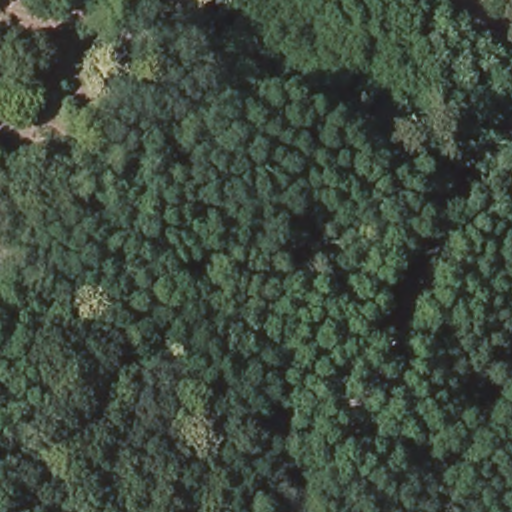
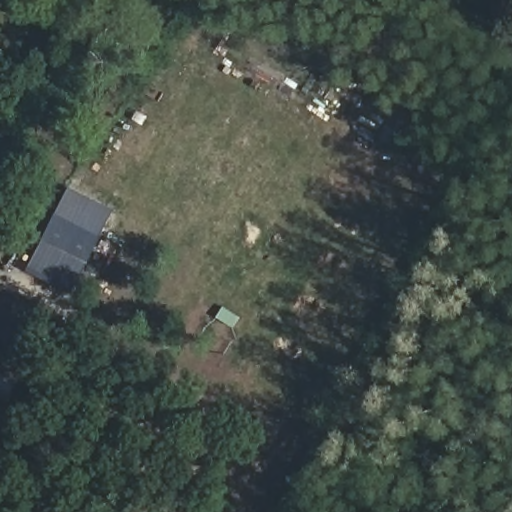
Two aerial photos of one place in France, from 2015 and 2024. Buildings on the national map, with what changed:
new [(74,290),(30,267),(70,189),(116,211),(101,237),(74,290)]

